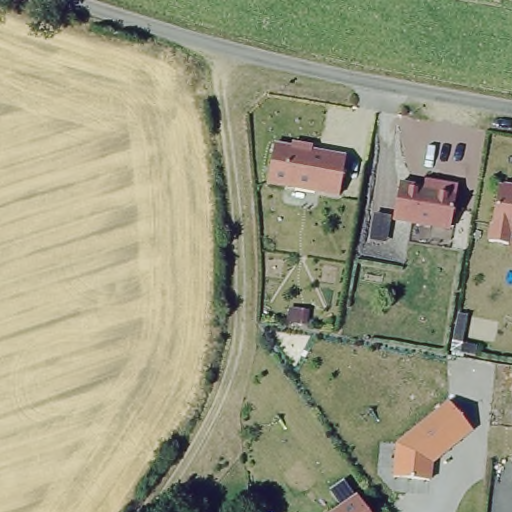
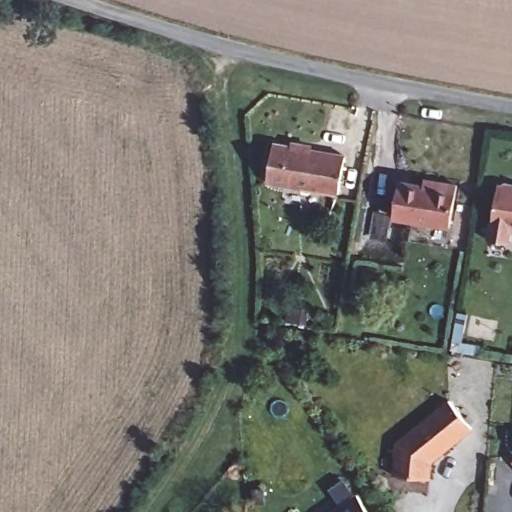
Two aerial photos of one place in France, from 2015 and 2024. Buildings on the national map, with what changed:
unchanged [(346,159),(339,197),(269,185),(274,148),(346,159)]
unchanged [(434,190),(435,183),(458,187),(451,230),(394,221),(400,185),(434,190)]
unchanged [(506,185),(512,187),(512,236),(511,237),(509,246),(491,243),(499,188),(502,188),(506,185)]
unchanged [(443,458),(442,457),(435,462),(434,482),(399,479),(401,446),(452,404),(475,431),(443,458)]
unchanged [(363,508),(366,512),(339,512),(357,499),(363,508)]

